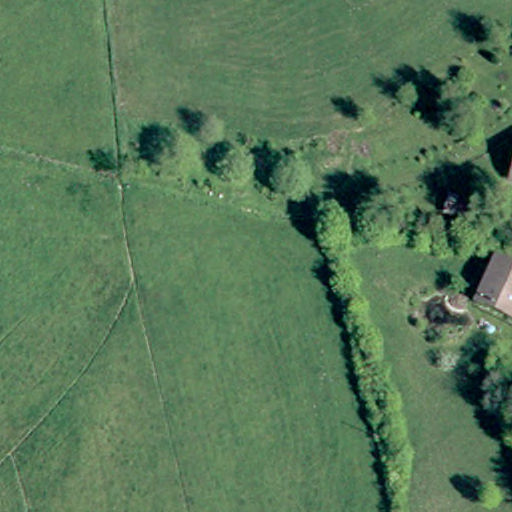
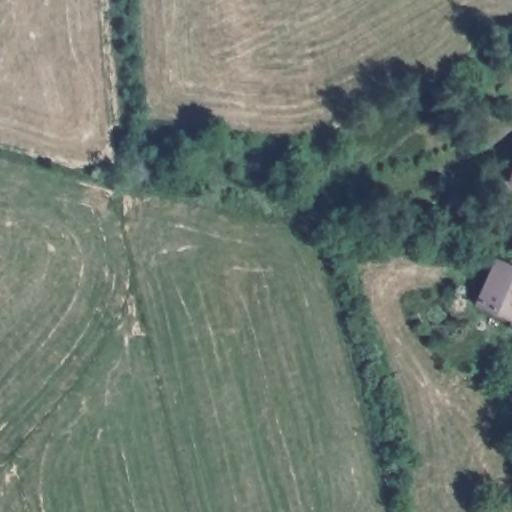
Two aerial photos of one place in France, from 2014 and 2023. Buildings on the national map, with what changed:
unchanged [(460,213),(466,195),(478,200),(472,217),(460,213)]
unchanged [(512,264),(512,318),(482,302),(503,259),(512,264)]
unchanged [(512,375),(512,382),(508,379),(512,375)]
unchanged [(503,396),(512,384),(512,406),(511,405),(505,401),(503,396)]

